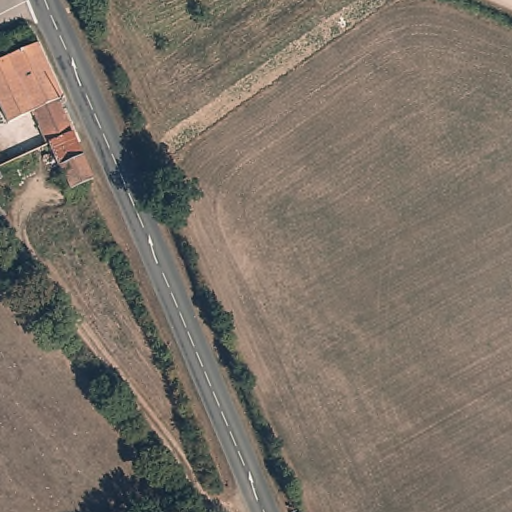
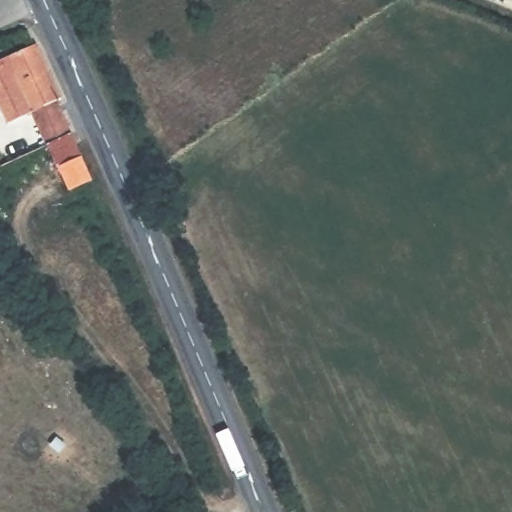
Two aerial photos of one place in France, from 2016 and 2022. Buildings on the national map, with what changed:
unchanged [(12,57),(41,44),(66,98),(62,100),(97,181),(75,190),(65,167),(63,168),(53,145),(51,144),(37,112),(13,123),(0,97),(0,63),(12,57)]
unchanged [(1,179),(0,180),(0,177),(1,179)]

